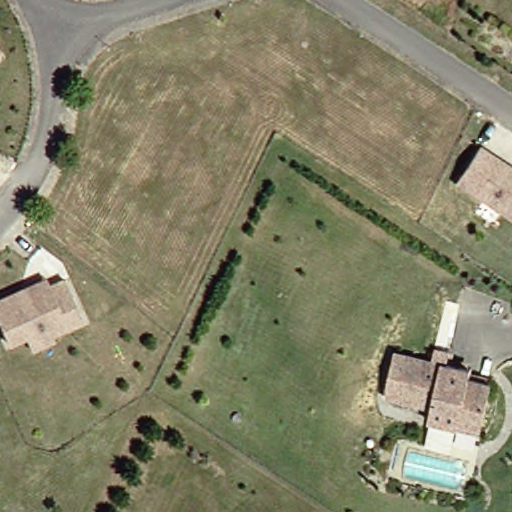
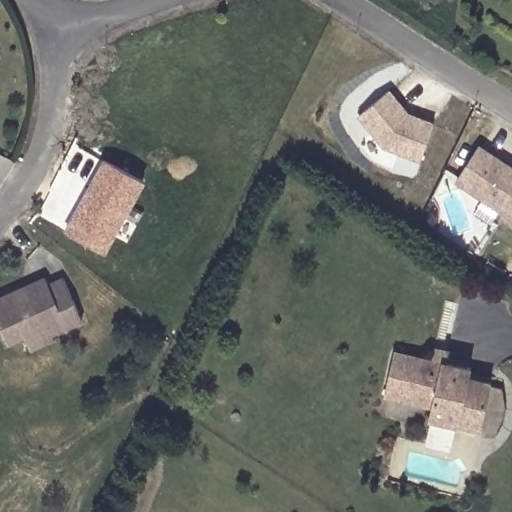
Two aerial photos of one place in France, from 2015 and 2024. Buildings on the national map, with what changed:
new [(388,92),(408,115),(434,124),(421,161),(385,148),(359,117),(388,92)]
unchanged [(479,143),(512,164),(512,216),(455,180),(479,143)]
new [(105,254),(64,230),(104,157),(147,182),(105,254)]
unchanged [(31,348),(23,336),(8,344),(0,328),(0,296),(21,286),(42,276),(46,283),(61,277),(81,319),(51,335),(52,337),(31,348)]
unchanged [(463,428),(435,422),(437,409),(390,398),(401,352),(476,371),(475,380),(497,385),(491,408),(486,434),(463,428)]

